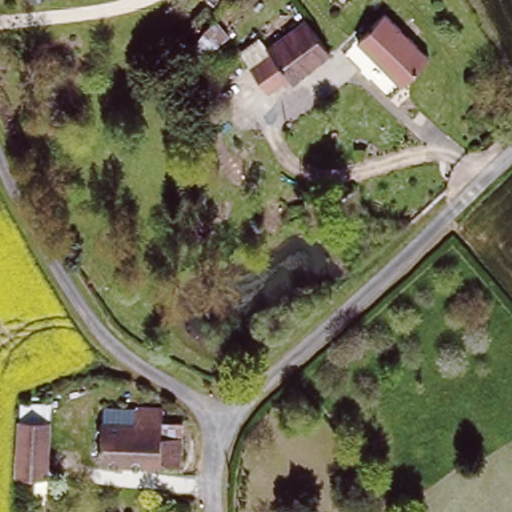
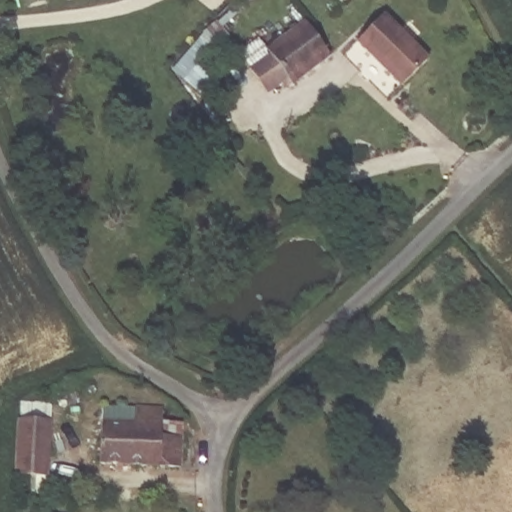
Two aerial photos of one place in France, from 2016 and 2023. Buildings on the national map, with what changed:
unchanged [(430,60),(402,86),(358,42),(384,13),(430,60)]
unchanged [(271,94),(253,69),(273,55),(270,50),(309,22),(334,58),(294,85),(289,90),(284,84),(271,94)]
unchanged [(159,410),(160,439),(180,440),(180,466),(103,466),(103,424),(131,425),(132,410),(159,410)]
unchanged [(46,415),(43,471),(16,471),(18,414),(46,415)]

